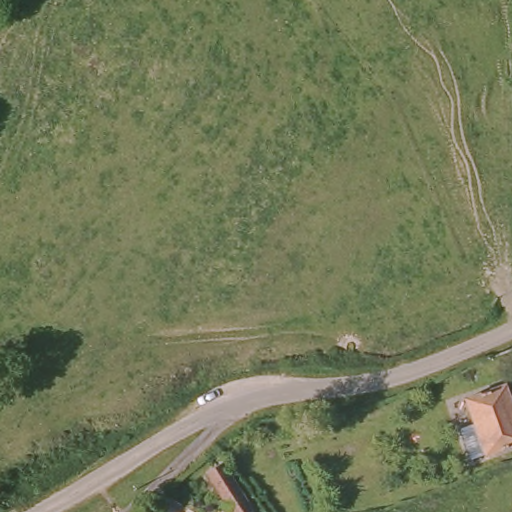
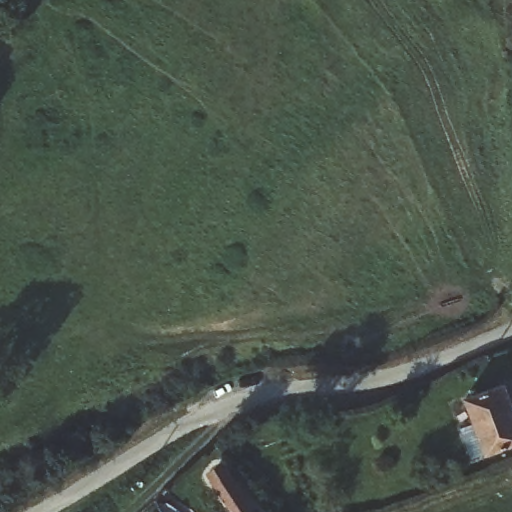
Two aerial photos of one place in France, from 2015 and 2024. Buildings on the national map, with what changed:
unchanged [(479,433),(468,403),(509,390),(512,400),(512,451),(488,460),(479,433)]
unchanged [(218,491),(236,482),(249,512),(226,512),(218,491)]

